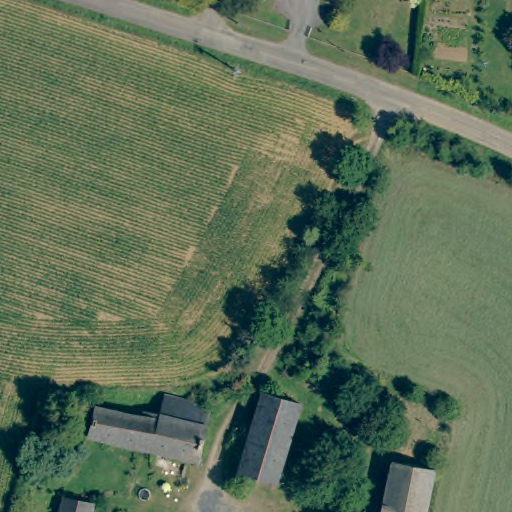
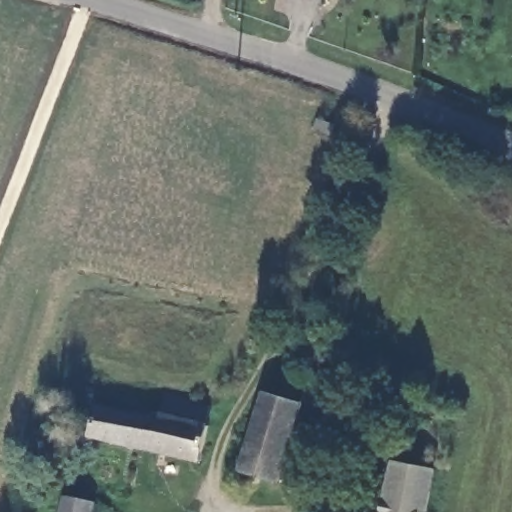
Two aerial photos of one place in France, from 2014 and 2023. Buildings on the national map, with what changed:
unchanged [(277,480),(239,471),(260,394),(271,396),(274,383),(301,389),(290,429),(277,480)]
unchanged [(195,460),(86,434),(91,410),(139,420),(141,411),(156,414),(161,394),(207,404),(195,460)]
unchanged [(435,470),(425,512),(381,512),(394,459),(435,470)]
unchanged [(88,512),(56,512),(61,492),(91,500),(88,512)]

